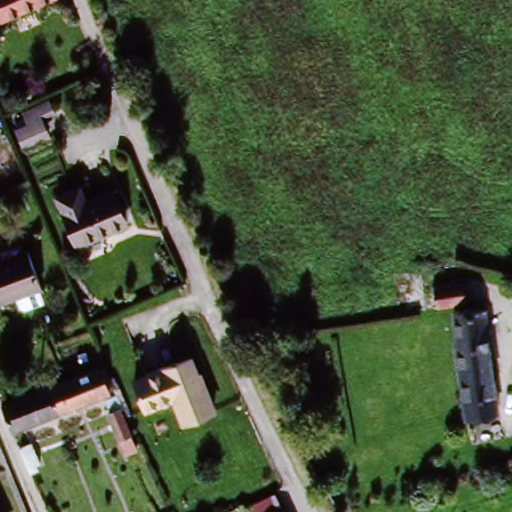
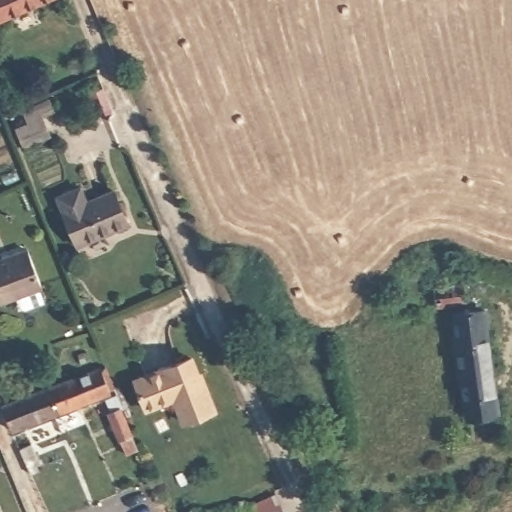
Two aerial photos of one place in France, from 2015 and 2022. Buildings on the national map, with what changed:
unchanged [(0,0),(53,0),(0,21),(0,0)]
unchanged [(16,129),(27,124),(23,114),(48,102),(55,115),(43,120),(51,139),(25,151),(16,129)]
unchanged [(117,200),(128,227),(103,236),(105,241),(77,252),(59,202),(83,194),(89,210),(117,200)]
unchanged [(0,302),(0,259),(25,250),(40,287),(0,302)]
unchanged [(462,287),(463,307),(433,310),(431,289),(462,287)]
unchanged [(453,318),(483,314),(497,417),(466,421),(453,318)]
unchanged [(189,364),(201,392),(204,391),(214,415),(186,427),(176,405),(145,417),(133,389),(189,364)]
unchanged [(114,394),(10,435),(1,412),(105,372),(114,394)]
unchanged [(111,420),(123,416),(133,440),(120,444),(111,420)]
unchanged [(40,463),(35,465),(37,472),(29,475),(17,448),(31,442),(40,463)]
unchanged [(239,500),(271,486),(286,512),(244,512),(239,500)]

